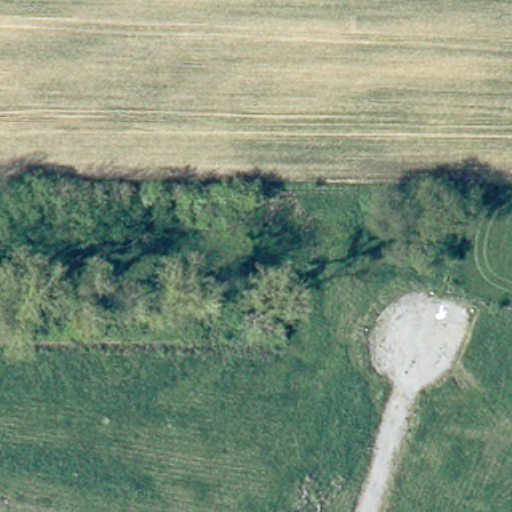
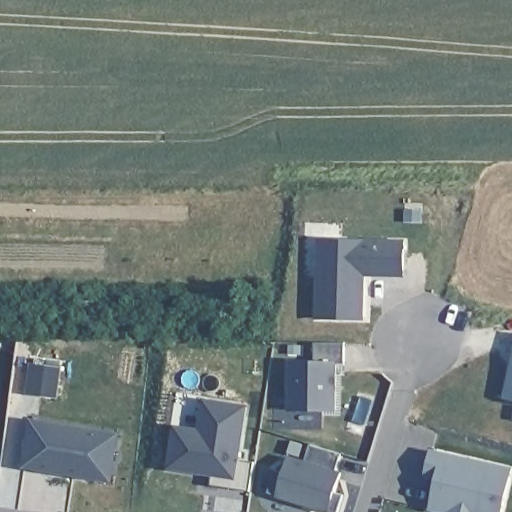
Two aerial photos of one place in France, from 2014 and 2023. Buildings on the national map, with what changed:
new [(364,320),(316,319),(318,239),(405,241),(403,277),(365,277),(364,320)]
new [(313,361),(315,342),(345,342),(345,363),(335,362),(335,412),(288,410),(288,361),(313,361)]
new [(512,359),(512,401),(503,399),(512,359)]
new [(252,462),(249,491),(212,485),(212,476),(167,468),(173,425),(198,429),(201,398),(247,405),(239,461),(252,462)]
new [(111,483),(21,468),(29,418),(118,433),(111,483)]
new [(285,472),(288,456),(305,460),(310,446),(340,455),(336,471),(340,473),(335,492),(341,496),(337,512),(328,512),(277,496),(268,493),(275,471),(285,472)]
new [(510,469),(500,512),(443,512),(430,509),(434,491),(437,478),(426,476),(431,452),(510,469)]

